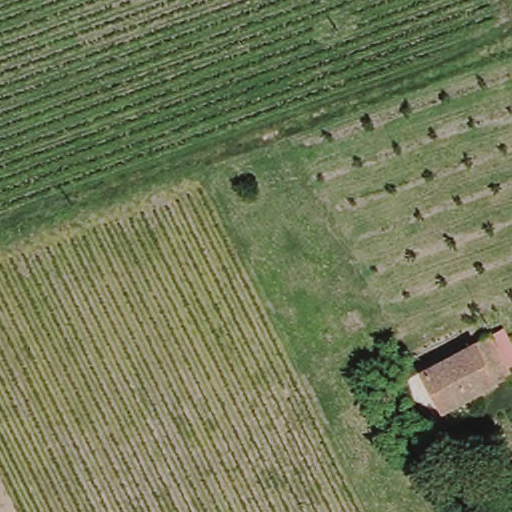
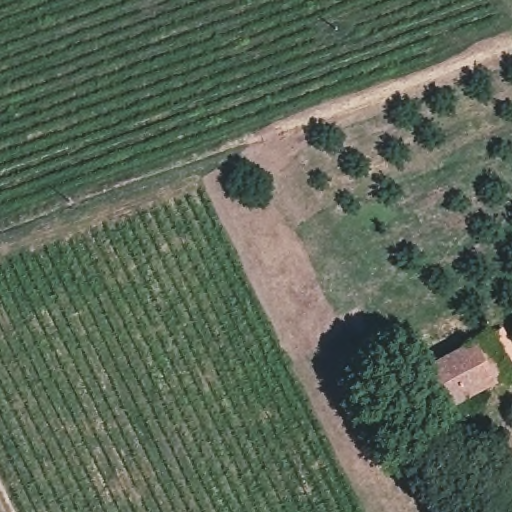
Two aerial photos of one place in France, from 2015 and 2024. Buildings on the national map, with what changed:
unchanged [(484,337),(503,378),(478,390),(459,348),(484,337)]
unchanged [(478,390),(437,410),(414,370),(459,348),(478,390)]

